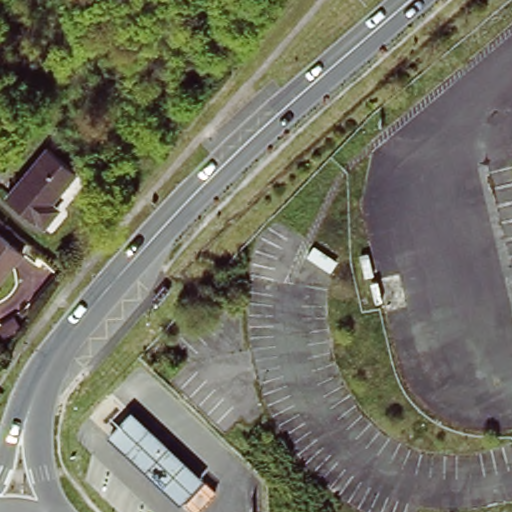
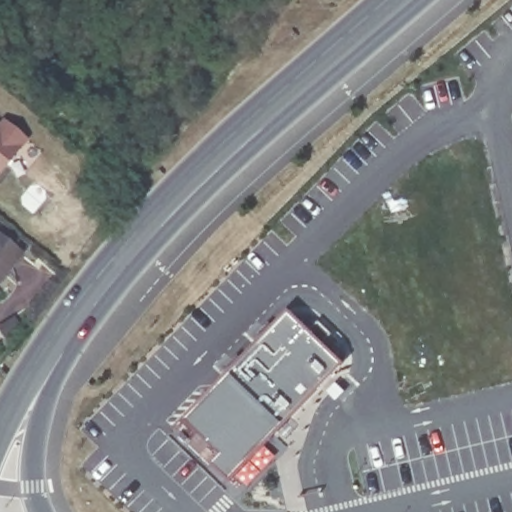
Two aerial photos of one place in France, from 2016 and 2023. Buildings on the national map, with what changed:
new [(0,170),(0,122),(2,119),(27,138),(0,170)]
demolished [(80,164),(53,198),(63,205),(47,221),(38,212),(35,215),(8,193),(50,141),(80,164)]
unchanged [(24,249),(0,278),(0,226),(24,249)]
new [(228,481),(211,464),(221,453),(183,418),(287,312),(308,330),(317,323),(328,335),(320,343),(342,364),(228,481)]
demolished [(148,467),(132,451),(152,428),(169,443),(148,467)]

